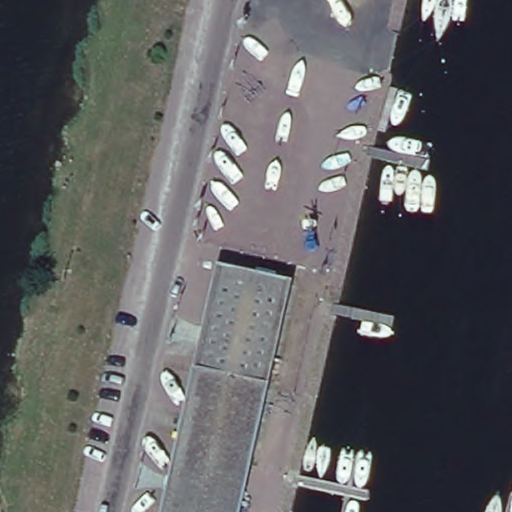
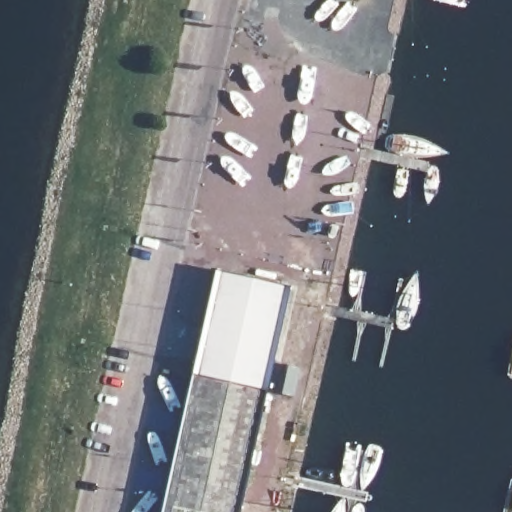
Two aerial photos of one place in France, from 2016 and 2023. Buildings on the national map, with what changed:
unchanged [(246,502),(169,485),(219,260),(295,278),(246,502)]
unchanged [(246,502),(243,512),(163,512),(169,485),(246,502)]

